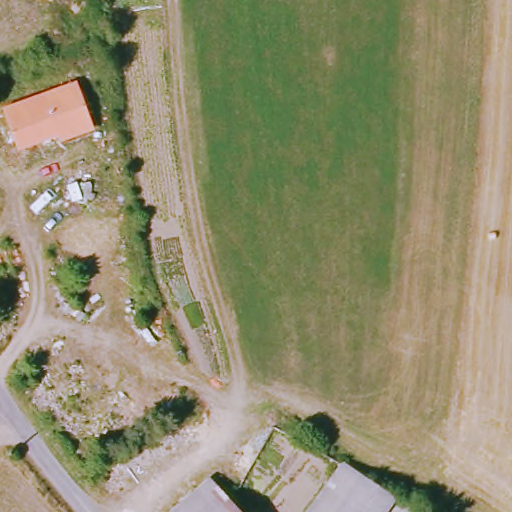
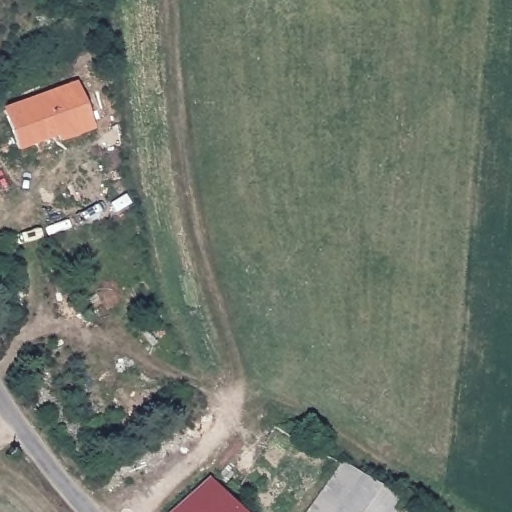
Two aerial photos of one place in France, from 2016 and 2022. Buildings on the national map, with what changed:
unchanged [(93,130),(63,143),(60,137),(20,150),(4,109),(76,82),(93,130)]
unchanged [(360,483),(339,512),(304,512),(338,465),(360,483)]
unchanged [(239,512),(172,512),(210,480),(239,512)]
unchanged [(400,512),(339,512),(360,483),(400,512)]

